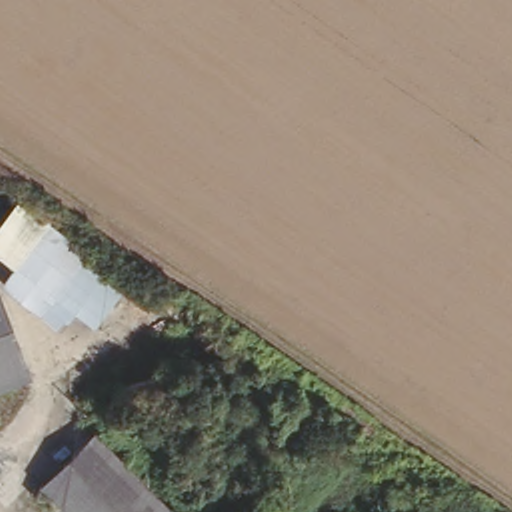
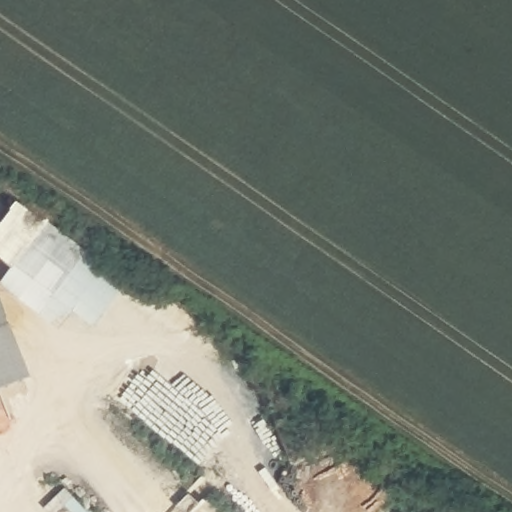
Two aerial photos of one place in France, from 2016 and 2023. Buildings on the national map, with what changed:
unchanged [(0,183),(0,179),(2,180),(0,183)]
unchanged [(0,256),(0,223),(19,199),(130,280),(96,323),(75,312),(62,330),(0,283),(15,267),(0,256)]
unchanged [(0,386),(0,290),(29,375),(0,386)]
demolished [(96,428),(178,512),(70,512),(40,481),(96,428)]

